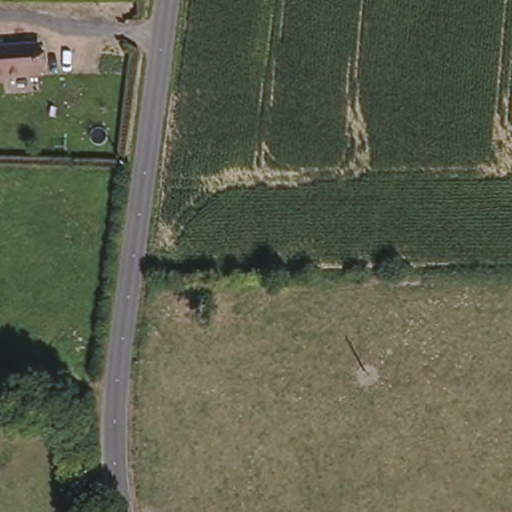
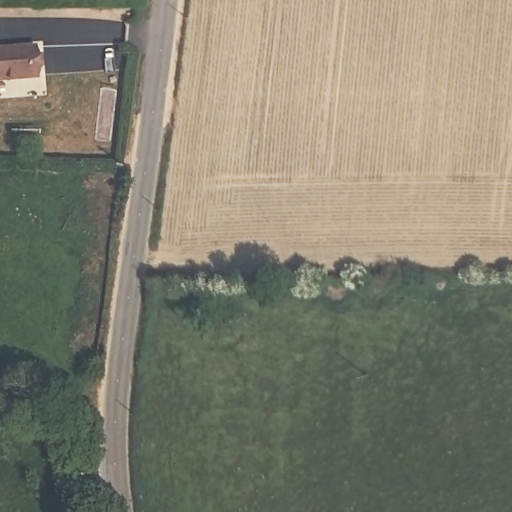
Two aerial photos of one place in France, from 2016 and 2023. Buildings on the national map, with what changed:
unchanged [(34,60),(36,76),(0,79),(0,49),(33,46),(34,60)]

